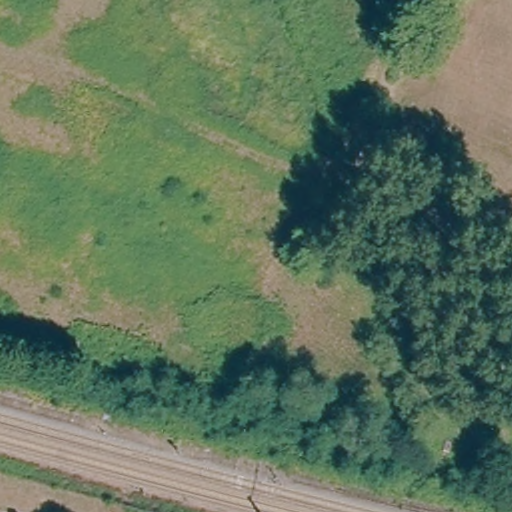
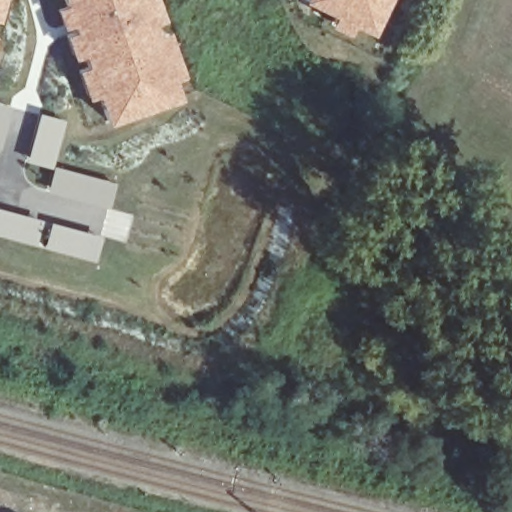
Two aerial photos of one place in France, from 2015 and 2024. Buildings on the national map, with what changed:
new [(108,122),(64,0),(142,0),(176,97),(108,122)]
new [(352,26),(347,35),(327,25),(330,16),(299,0),(390,0),(371,36),(352,26)]
new [(10,105),(0,147),(0,102),(10,105)]
new [(31,160),(44,114),(65,120),(52,166),(114,182),(107,207),(43,190),(50,166),(31,160)]
new [(0,235),(0,208),(38,218),(31,244),(0,235)]
new [(102,235),(95,261),(49,250),(55,224),(102,235)]

